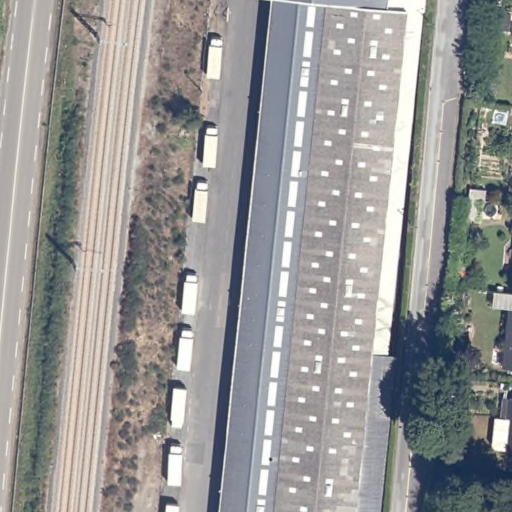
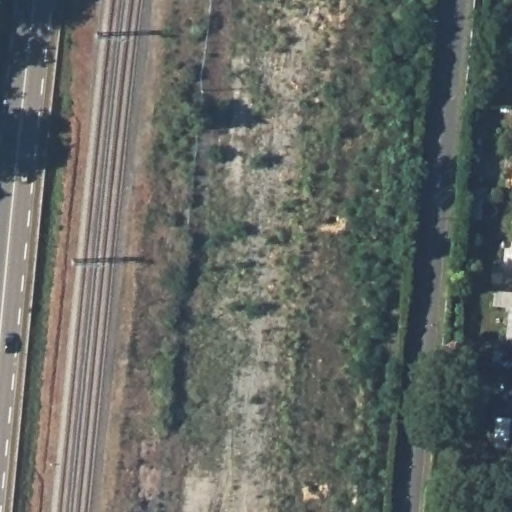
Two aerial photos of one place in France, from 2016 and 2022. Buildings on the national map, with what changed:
demolished [(221,512),(274,0),(342,0),(390,5),(409,7),(409,8),(374,347),(357,512),(221,512)]
unchanged [(495,14),(507,15),(505,29),(495,28),(495,14)]
unchanged [(511,309),(512,310),(512,368),(505,367),(511,309)]
unchanged [(508,403),(512,403),(512,454),(502,453),(498,449),(501,421),(506,422),(508,403)]

